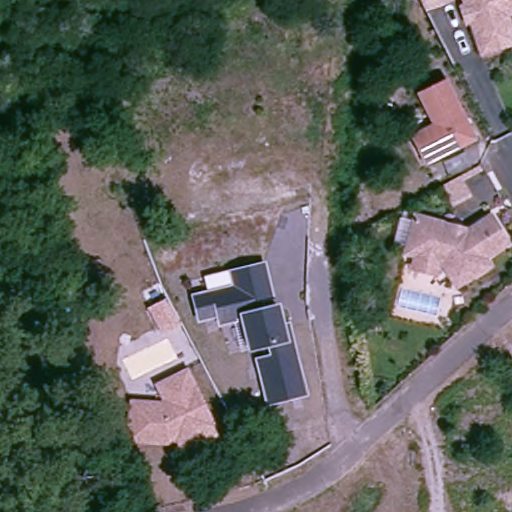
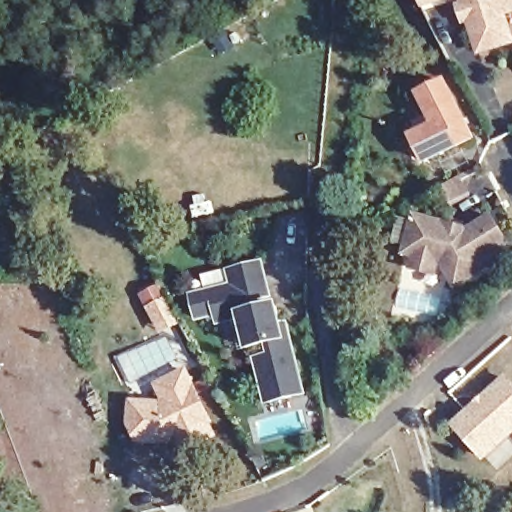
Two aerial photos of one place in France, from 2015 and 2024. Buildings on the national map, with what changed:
unchanged [(419,0),(439,0),(423,8),(419,0)]
unchanged [(511,12),(512,17),(512,41),(486,50),(474,15),(478,14),(474,4),(471,5),(469,0),(512,0),(512,12),(511,12)]
unchanged [(467,135),(419,158),(407,134),(431,122),(414,90),(439,78),(467,135)]
unchanged [(452,204),(443,188),(451,184),(462,177),(482,165),(484,169),(464,180),(471,192),(452,204)]
unchanged [(437,221),(439,227),(452,230),(458,226),(459,227),(482,212),(498,239),(475,254),(480,261),(452,278),(445,277),(434,259),(429,258),(429,260),(423,265),(409,261),(404,255),(406,252),(401,251),(397,245),(404,213),(437,221)]
unchanged [(264,261),(279,304),(284,323),(291,321),(308,396),(267,406),(255,359),(269,355),(268,346),(242,353),(234,322),(219,326),(215,317),(197,323),(189,295),(232,285),(229,269),(264,261)]
new [(158,324),(148,306),(165,296),(177,319),(170,322),(160,328),(158,324)]
unchanged [(368,298),(372,317),(357,320),(354,300),(368,298)]
unchanged [(161,402),(154,381),(189,365),(218,424),(212,427),(218,437),(181,455),(175,445),(125,442),(129,400),(161,402)]
new [(451,425),(506,374),(512,381),(512,436),(484,461),(451,425)]

